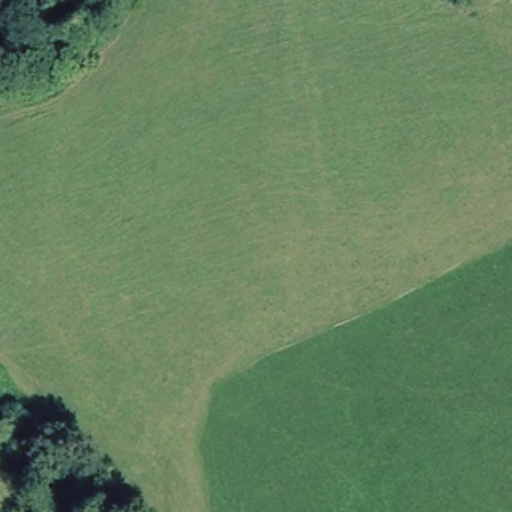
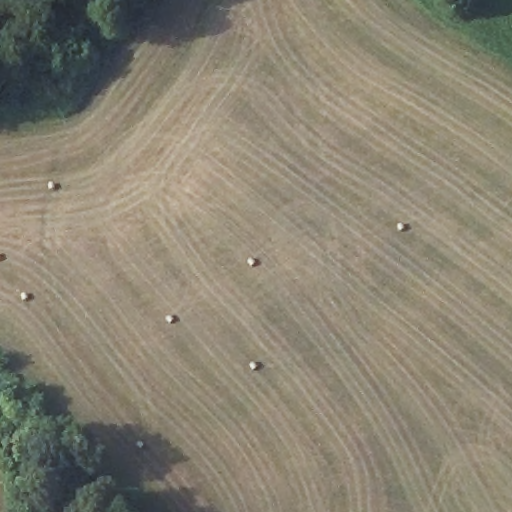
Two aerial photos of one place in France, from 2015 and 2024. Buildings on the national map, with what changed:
[]

